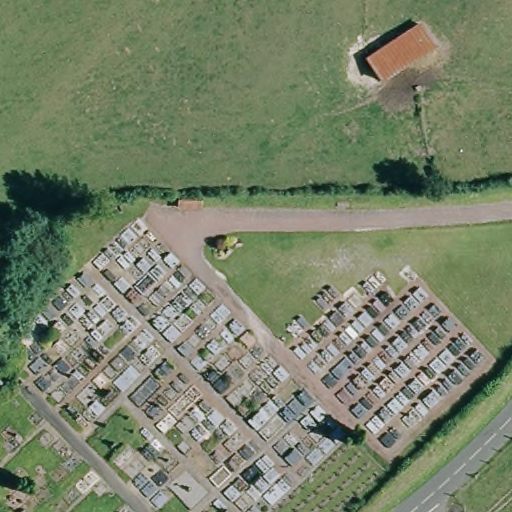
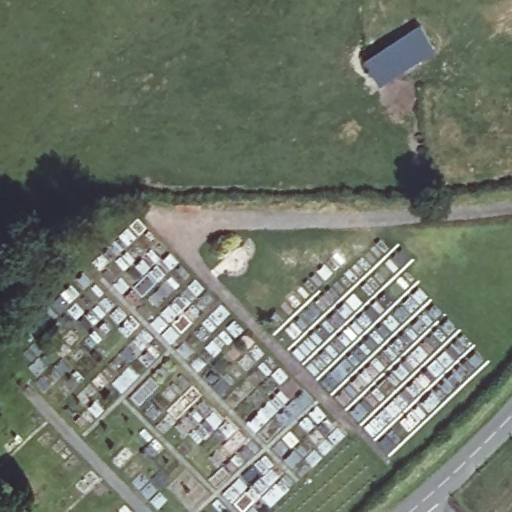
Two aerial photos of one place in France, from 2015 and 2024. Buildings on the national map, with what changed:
unchanged [(364,60),(421,22),(441,49),(380,87),(364,60)]

